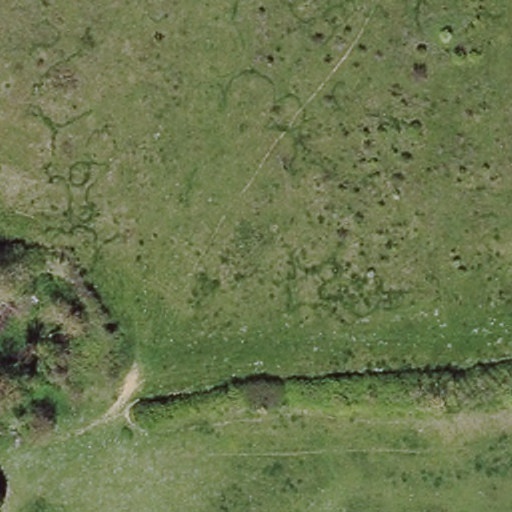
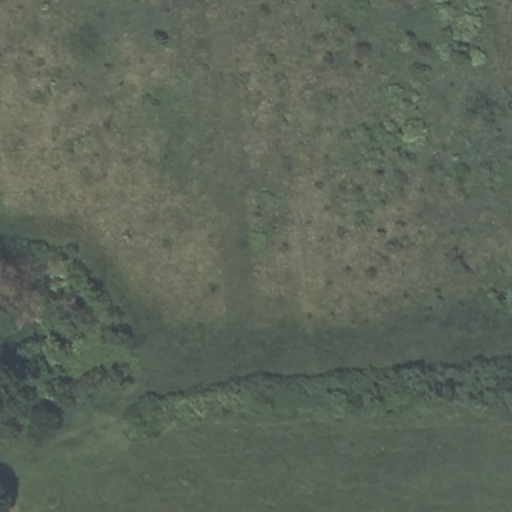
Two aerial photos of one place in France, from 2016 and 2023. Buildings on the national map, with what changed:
[]

